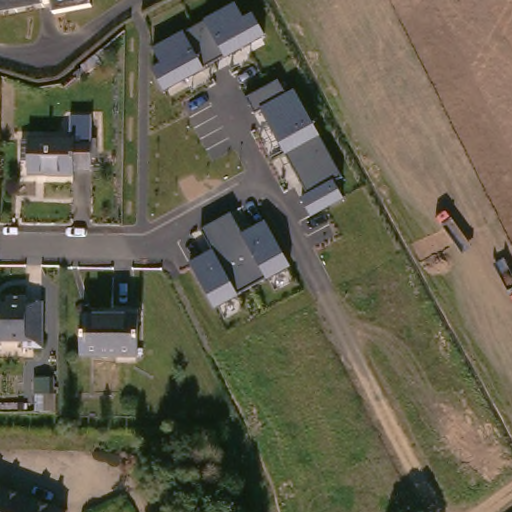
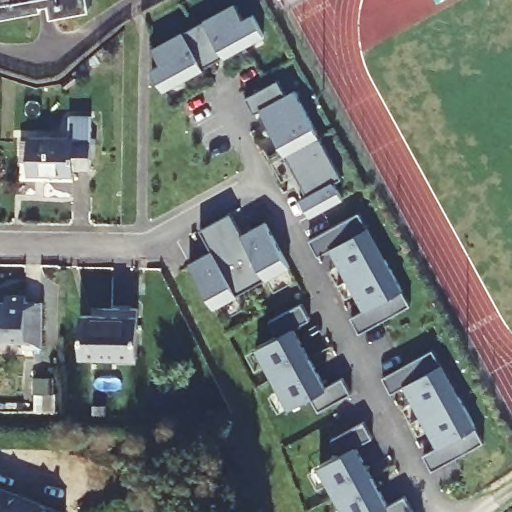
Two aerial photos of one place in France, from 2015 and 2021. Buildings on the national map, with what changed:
unchanged [(90,4),(51,10),(51,7),(38,9),(0,15),(0,0),(89,0),(90,4)]
unchanged [(165,90),(153,69),(161,63),(154,49),(235,4),(243,18),(253,14),(264,36),(165,90)]
unchanged [(313,216),(301,197),(307,193),(260,111),(254,114),(245,97),(275,80),(285,95),(293,90),(342,178),(333,181),(343,198),(313,216)]
unchanged [(92,119),(92,168),(89,168),(72,168),(72,176),(28,176),(28,139),(75,139),(75,119),(92,119)]
unchanged [(214,309),(187,262),(212,249),(201,230),(230,214),(242,235),(265,222),(290,267),(214,309)]
new [(357,214),(407,306),(357,334),(347,318),(362,310),(329,250),(315,258),(307,241),(357,214)]
unchanged [(44,300),(44,345),(25,346),(25,339),(0,339),(0,301),(6,301),(6,293),(27,293),(27,300),(44,300)]
unchanged [(85,316),(109,316),(109,305),(140,306),(140,355),(85,355),(85,316)]
new [(275,343),(267,328),(299,310),(308,326),(290,335),(322,393),(340,383),(348,399),(316,417),(307,403),(288,413),(255,354),(275,343)]
new [(428,350),(480,443),(427,471),(419,455),(435,446),(401,386),(387,394),(379,378),(428,350)]
new [(328,445),(360,427),(370,443),(352,451),(384,510),(401,501),(407,512),(339,512),(317,471),(337,460),(328,445)]
unchanged [(70,511),(70,512),(0,512),(0,487),(70,511)]

